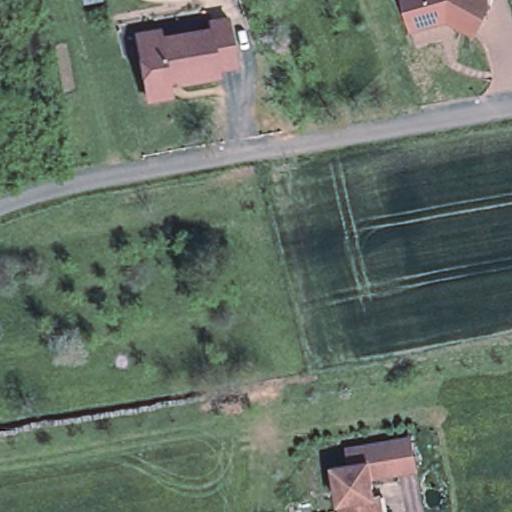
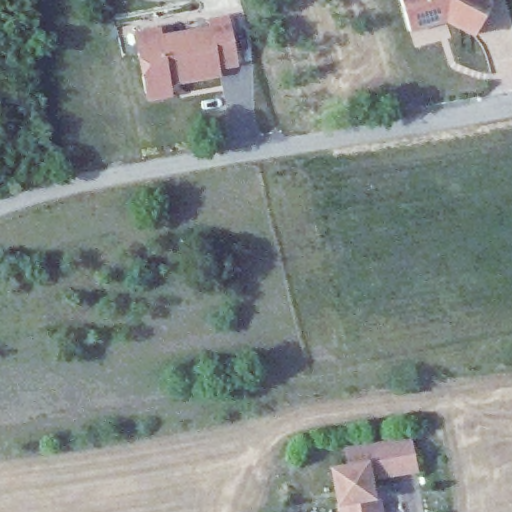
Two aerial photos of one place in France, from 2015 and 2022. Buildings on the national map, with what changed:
unchanged [(410,30),(401,0),(490,0),(491,2),(481,21),(474,34),(459,26),(446,19),(437,22),(435,22),(410,30)]
unchanged [(170,88),(170,92),(166,98),(164,98),(152,101),(146,97),(138,57),(131,19),(143,17),(154,14),(160,41),(201,34),(210,32),(209,25),(229,22),(237,67),(219,70),(220,78),(214,79),(180,84),(169,86),(170,88)]
unchanged [(385,512),(343,512),(341,500),(336,473),(336,468),(352,465),(350,449),(396,441),(415,438),(418,459),(420,471),(401,474),(374,478),(377,494),(377,497),(382,496),(385,512)]

